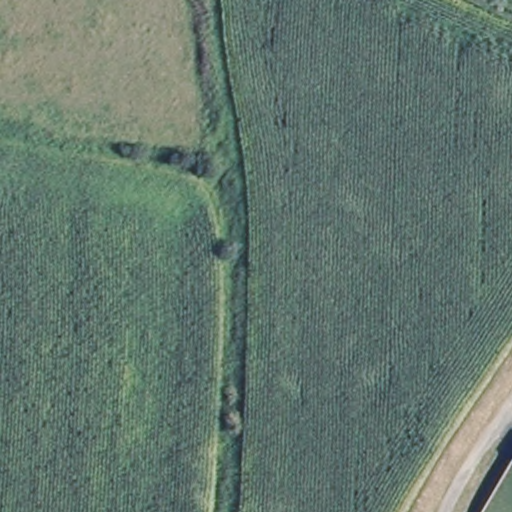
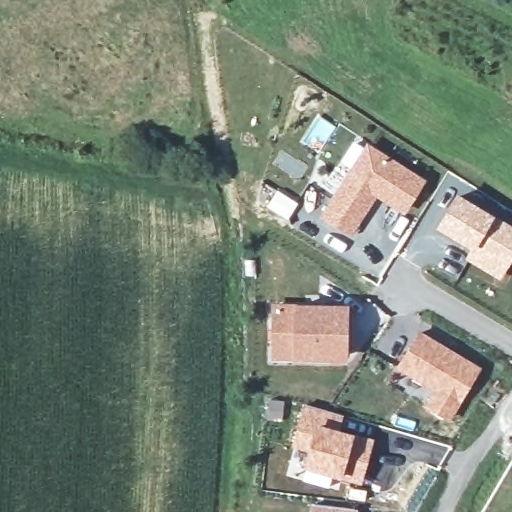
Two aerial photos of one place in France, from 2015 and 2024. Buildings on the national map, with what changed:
new [(318,216),(366,141),(427,180),(406,217),(376,198),(351,235),(318,216)]
new [(512,227),(512,260),(500,280),(466,259),(470,250),(436,230),(458,193),(512,227)]
new [(348,362),(270,359),(272,304),(349,304),(348,362)]
new [(397,367),(420,330),(482,369),(450,423),(425,407),(435,390),(397,367)]
new [(362,486),(342,479),(306,469),(310,451),(292,448),(305,405),(343,416),(339,429),(354,434),(374,439),(362,486)]
new [(311,504),(358,511),(358,512),(310,512),(311,504)]

